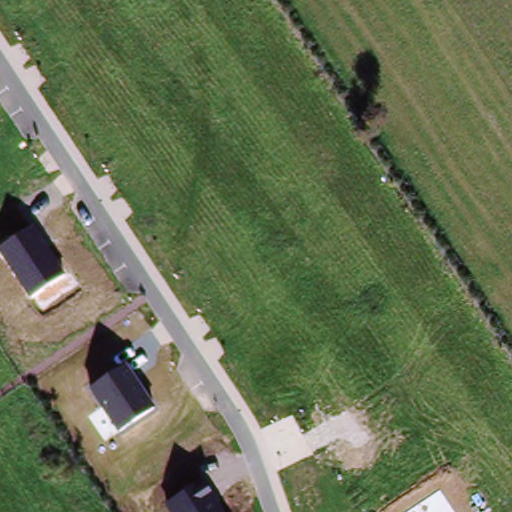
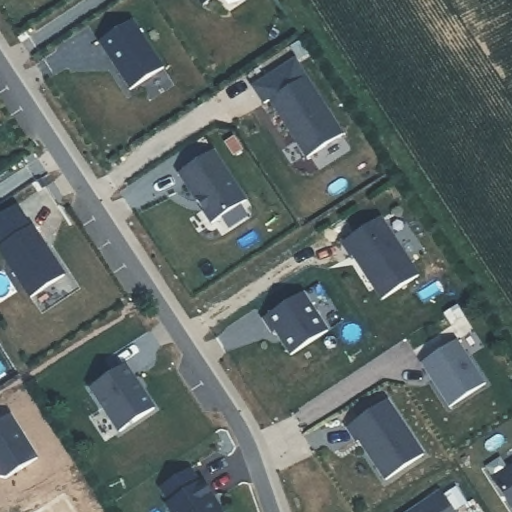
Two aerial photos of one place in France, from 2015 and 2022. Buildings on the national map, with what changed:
new [(200,0),(209,0),(202,4),(200,0)]
new [(131,18),(162,65),(128,88),(97,40),(131,18)]
new [(309,77),(346,134),(310,158),(272,101),(309,77)]
new [(213,153),(246,202),(212,224),(180,175),(213,153)]
new [(381,217),(420,275),(383,299),(355,254),(352,256),(343,242),(381,217)]
unchanged [(0,253),(0,245),(31,224),(65,272),(29,296),(0,253)]
new [(303,292),(328,331),(291,354),(276,331),(273,333),(263,318),(303,292)]
new [(462,342),(491,386),(455,409),(426,366),(462,342)]
unchanged [(126,364),(155,406),(119,431),(88,389),(126,364)]
new [(391,401),(427,456),(389,481),(363,441),(360,443),(350,428),(391,401)]
new [(512,505),(496,480),(512,470),(512,505)]
unchanged [(167,506),(203,482),(223,512),(171,512),(167,506)]
new [(442,494),(455,487),(468,506),(459,512),(407,512),(440,491),(442,494)]

